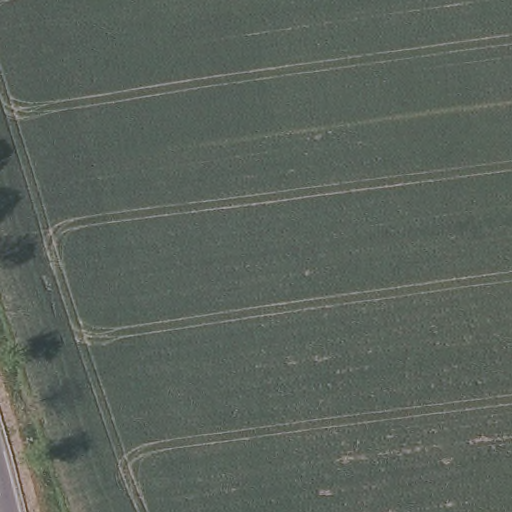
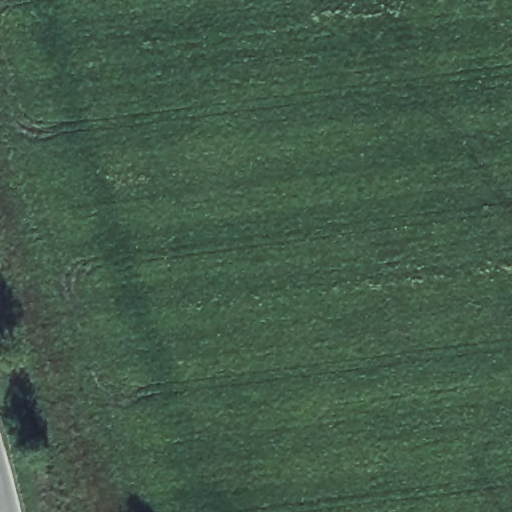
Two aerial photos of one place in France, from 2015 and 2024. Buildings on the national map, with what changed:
[]

